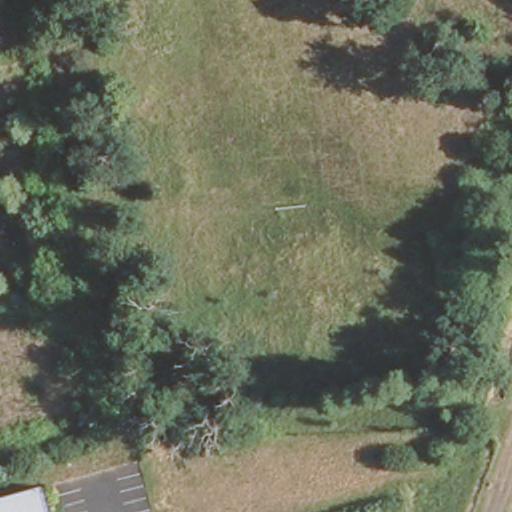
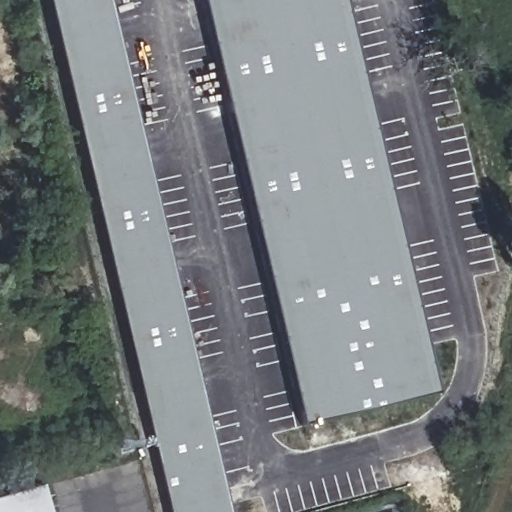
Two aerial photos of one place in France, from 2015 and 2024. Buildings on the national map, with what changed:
new [(228,512),(169,512),(49,0),(108,0),(228,512)]
new [(436,392),(303,423),(202,0),(344,0),(436,392)]
unchanged [(50,512),(0,512),(0,498),(43,487),(50,512)]

